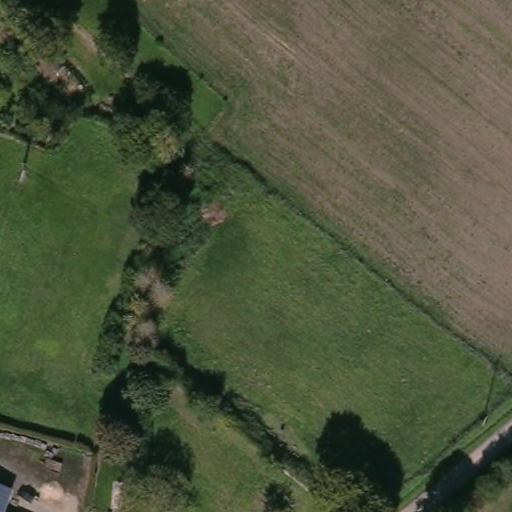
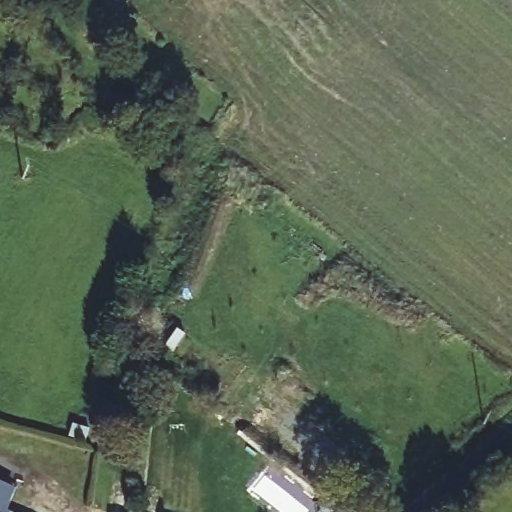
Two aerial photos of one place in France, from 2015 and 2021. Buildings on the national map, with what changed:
unchanged [(17,486),(7,512),(0,512),(0,479),(17,486)]

